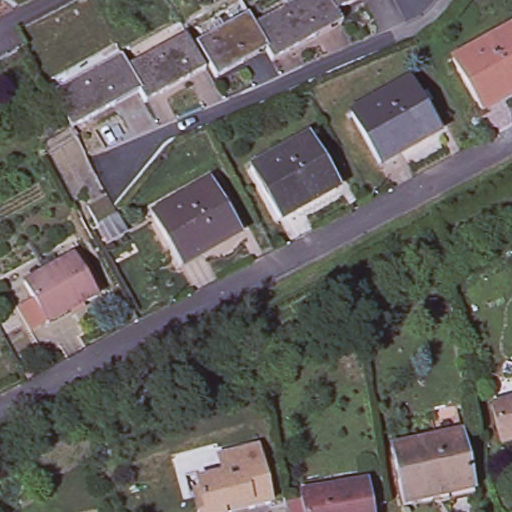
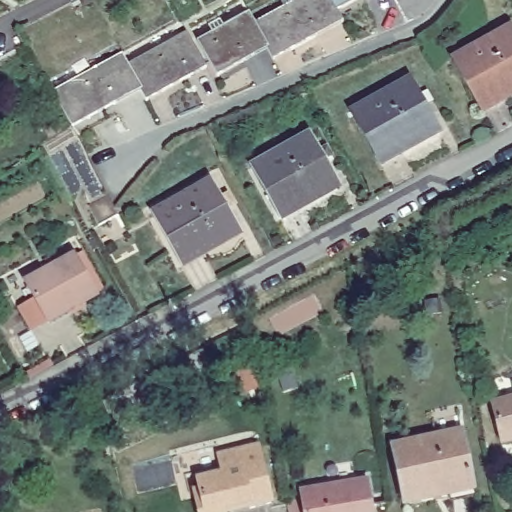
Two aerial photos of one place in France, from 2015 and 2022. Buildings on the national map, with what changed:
unchanged [(268,44),(253,17),(284,0),(331,0),(335,6),(341,18),(273,55),(268,44)]
unchanged [(335,6),(331,0),(346,0),(335,6)]
unchanged [(248,6),(253,17),(268,44),(216,70),(197,35),(248,6)]
unchanged [(147,95),(141,85),(127,59),(186,26),(206,62),(147,95)]
unchanged [(512,30),(512,95),(481,112),(452,60),(511,28),(512,30)]
unchanged [(121,46),(127,59),(141,85),(72,124),(51,85),(121,46)]
unchanged [(411,80),(436,125),(412,138),(416,145),(380,164),(352,113),(411,80)]
unchanged [(309,134),(334,177),(311,190),(315,197),(278,217),(250,167),(309,134)]
unchanged [(210,179),(236,225),(213,238),(216,244),(179,265),(150,212),(210,179)]
unchanged [(114,207),(118,215),(99,226),(87,206),(107,195),(114,207)]
unchanged [(74,255),(97,296),(68,312),(66,309),(46,320),(25,281),(74,255)]
unchanged [(501,436),(492,402),(512,397),(512,434),(501,436)]
unchanged [(405,504),(392,444),(435,435),(432,420),(459,415),(462,430),(473,489),(405,504)]
unchanged [(202,482),(200,473),(222,467),(218,450),(257,440),(270,495),(249,500),(248,495),(224,500),(226,508),(213,512),(200,512),(194,485),(202,482)]
unchanged [(312,492),(311,486),(376,475),(382,512),(299,512),(295,496),(312,492)]

